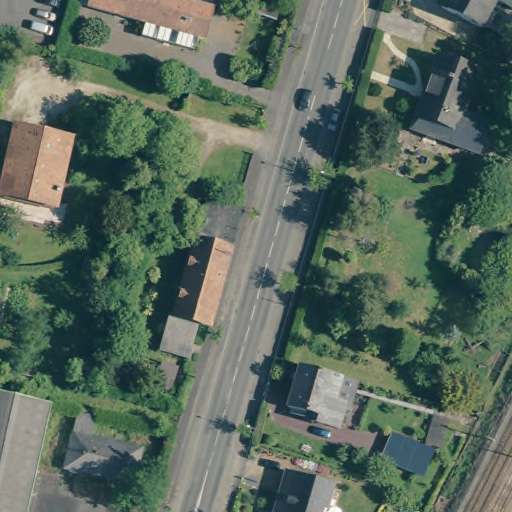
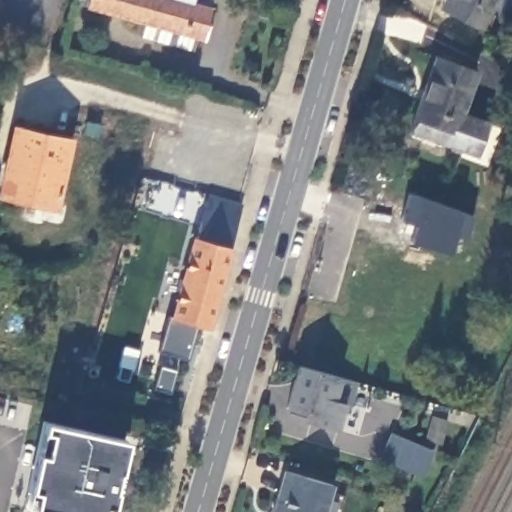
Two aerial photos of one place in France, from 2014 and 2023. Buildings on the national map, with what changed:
unchanged [(150,24),(93,8),(81,4),(83,0),(187,0),(199,4),(219,9),(210,41),(203,39),(199,52),(146,37),(150,24)]
unchanged [(187,0),(199,0),(199,4),(187,0)]
unchanged [(447,0),(496,0),(481,29),(443,9),(447,0)]
unchanged [(478,155),(475,154),(451,146),(411,133),(436,59),(477,73),(462,115),(489,124),(478,155)]
unchanged [(56,210),(1,197),(17,129),(71,141),(56,210)]
unchanged [(247,211),(215,333),(205,330),(194,364),(165,357),(175,320),(182,322),(216,202),(245,209),(247,211)]
unchanged [(286,405),(282,404),(294,362),(315,368),(335,374),(355,379),(346,407),(339,406),(333,427),(306,419),(306,418),(284,411),(286,405)]
unchanged [(170,392),(156,389),(163,366),(177,370),(170,392)]
demolished [(0,388),(53,400),(29,512),(0,512),(0,388)]
demolished [(96,434),(147,446),(139,481),(71,466),(85,406),(103,409),(96,434)]
new [(423,448),(431,418),(447,422),(439,452),(433,453),(422,478),(380,461),(383,453),(390,434),(423,448)]
new [(111,508),(102,506),(100,512),(54,512),(33,508),(35,491),(29,489),(36,454),(45,456),(50,433),(41,430),(43,422),(125,441),(111,508)]
demolished [(357,452),(360,444),(367,426),(400,439),(410,444),(399,469),(357,452)]
unchanged [(272,510),(284,469),(334,484),(326,512),(271,512),(272,510)]

